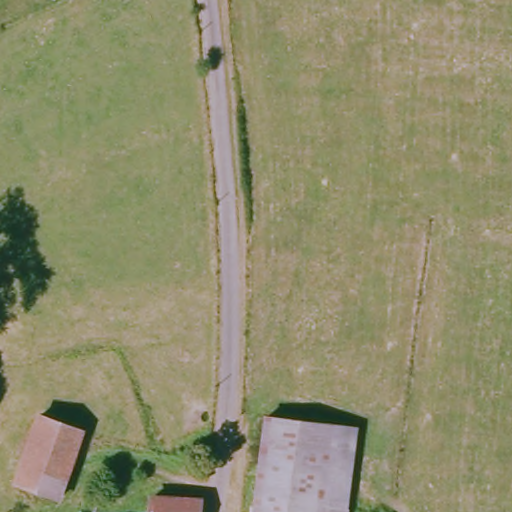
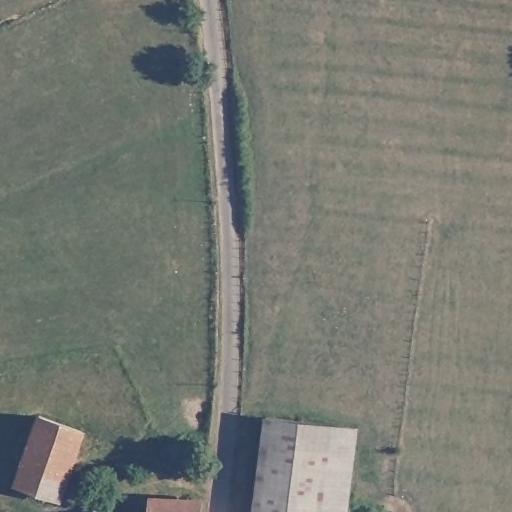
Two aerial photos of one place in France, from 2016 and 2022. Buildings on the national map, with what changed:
unchanged [(354,424),(343,512),(253,512),(266,413),(354,424)]
unchanged [(79,438),(56,503),(13,486),(36,422),(79,438)]
unchanged [(195,512),(146,512),(147,497),(196,498),(195,512)]

